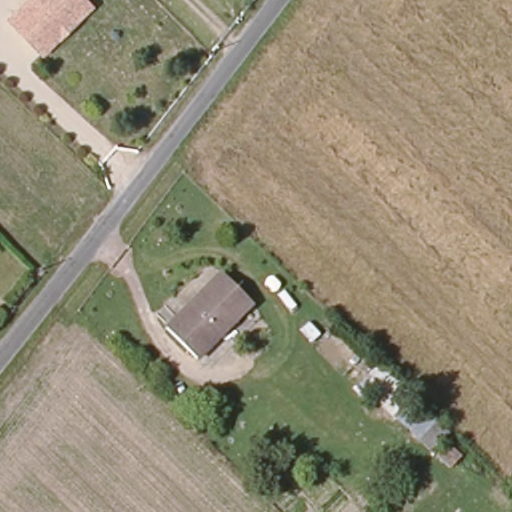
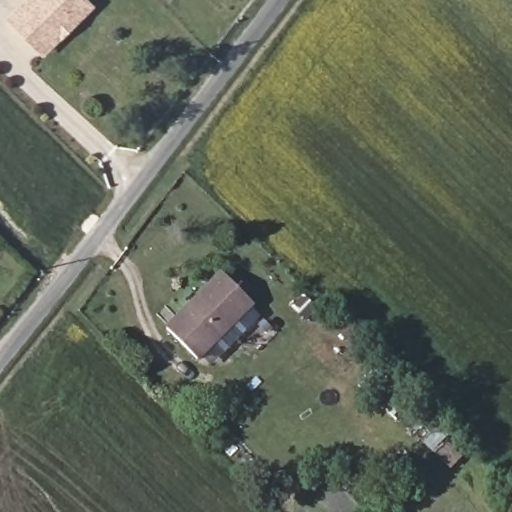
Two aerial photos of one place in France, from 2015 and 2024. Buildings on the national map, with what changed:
unchanged [(40,47),(12,20),(32,0),(88,0),(94,6),(47,54),(40,47)]
unchanged [(197,353),(165,325),(220,271),(250,301),(197,353)]

